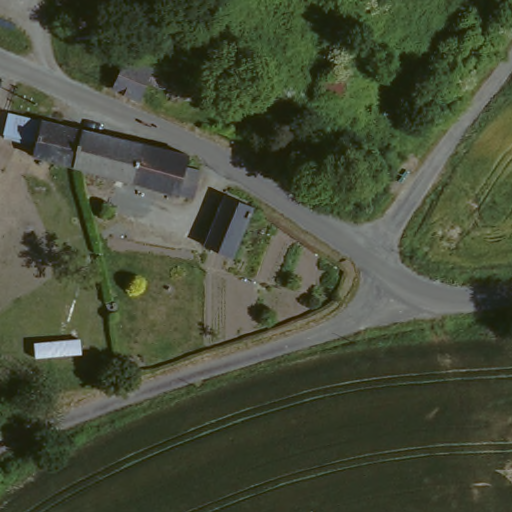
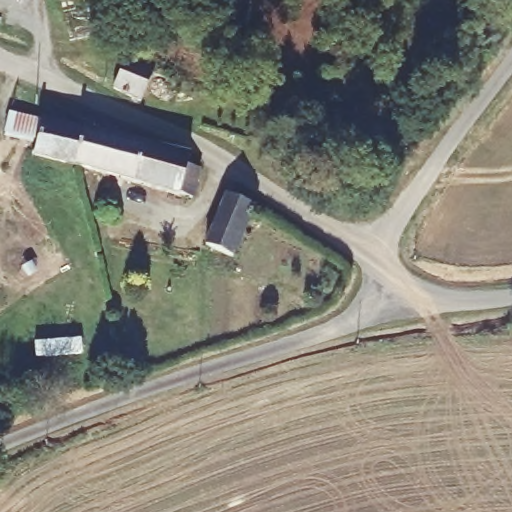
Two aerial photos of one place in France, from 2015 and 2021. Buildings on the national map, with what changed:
unchanged [(326,32),(350,32),(353,92),(330,92),(326,32)]
unchanged [(160,66),(146,100),(119,89),(114,87),(126,54),(160,66)]
unchanged [(1,123),(5,105),(34,113),(73,122),(66,152),(29,144),(31,130),(1,123)]
unchanged [(79,124),(183,147),(182,158),(193,160),(190,178),(96,159),(66,152),(73,122),(79,124)]
unchanged [(227,194),(252,202),(235,252),(209,249),(227,194)]

